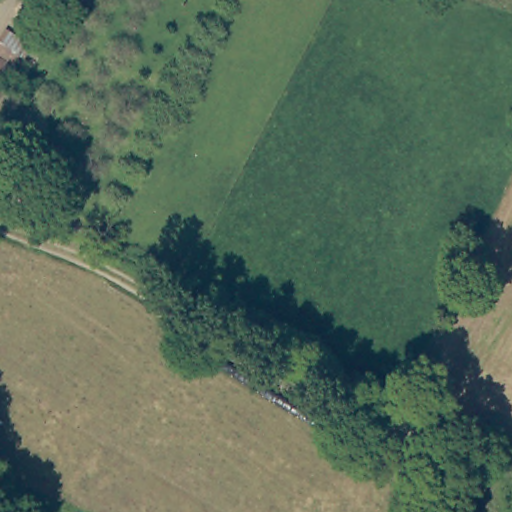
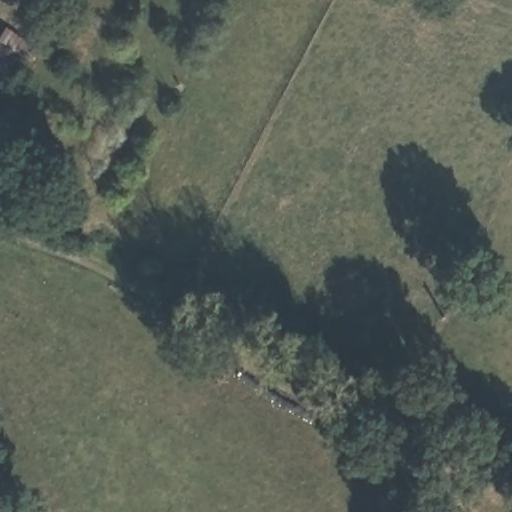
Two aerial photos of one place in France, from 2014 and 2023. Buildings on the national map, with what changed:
unchanged [(0,88),(0,86),(1,86),(0,88)]

